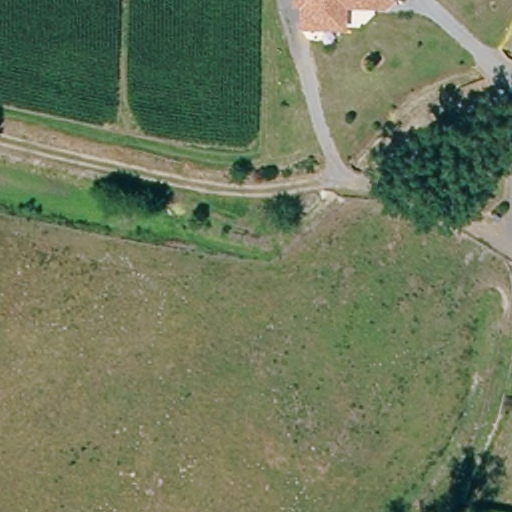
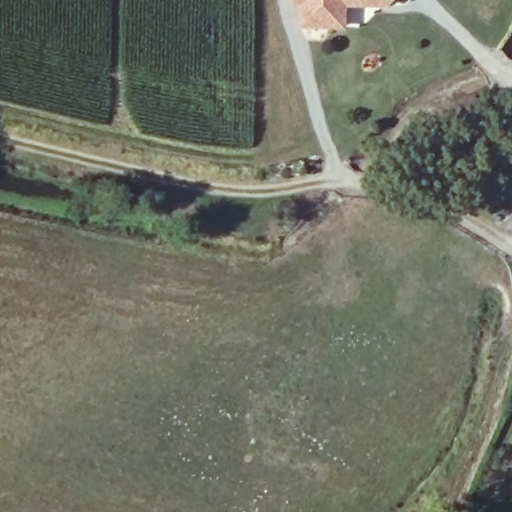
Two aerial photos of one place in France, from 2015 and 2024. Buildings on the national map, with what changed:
unchanged [(320,6),(320,0),(396,0),(388,7),(348,7),(320,6)]

